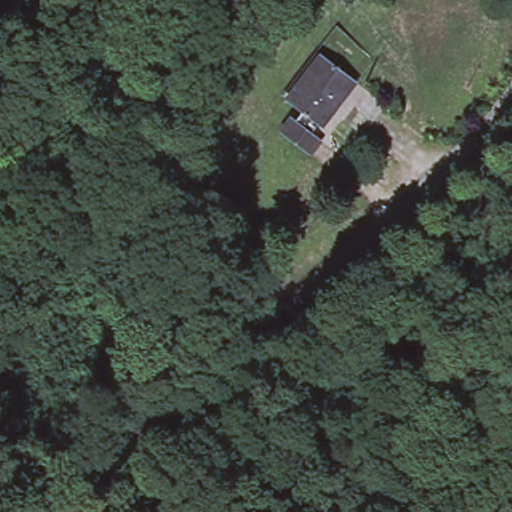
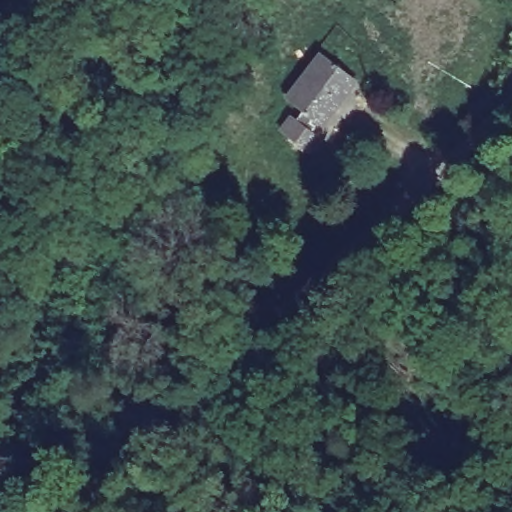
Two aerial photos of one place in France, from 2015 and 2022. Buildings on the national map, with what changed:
unchanged [(316,50),(350,77),(316,118),(283,92),(316,50)]
unchanged [(287,112),(300,121),(304,117),(310,122),(306,127),(316,135),(305,149),(276,127),(287,112)]

